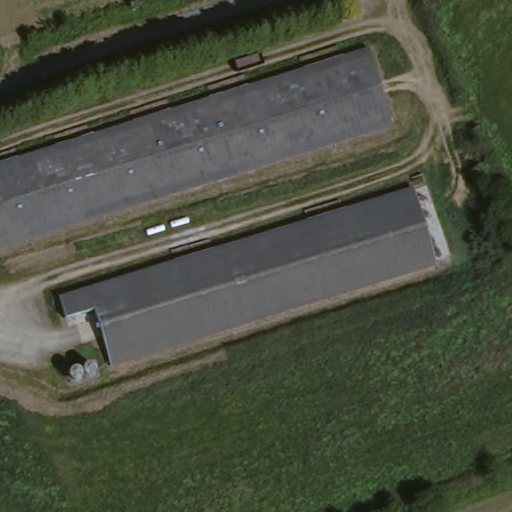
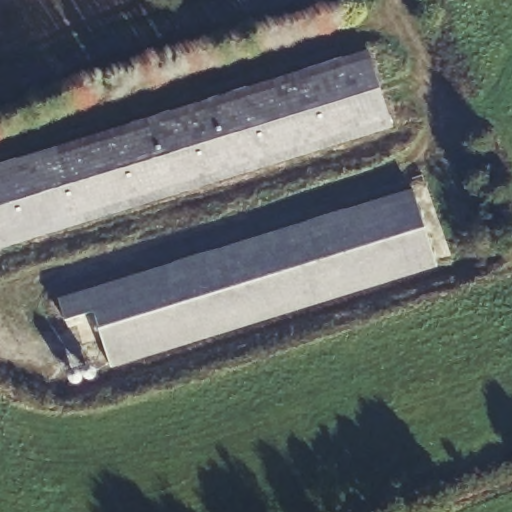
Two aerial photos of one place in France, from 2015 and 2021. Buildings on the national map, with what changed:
unchanged [(109,136),(370,57),(394,132),(133,213),(0,255),(0,170),(109,136)]
unchanged [(52,304),(412,193),(436,267),(272,317),(76,377),(52,304)]

